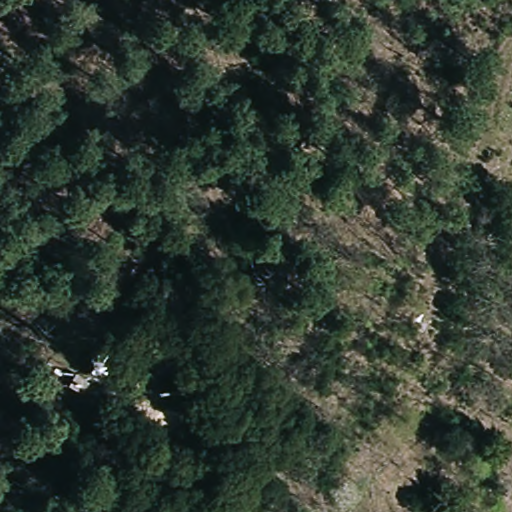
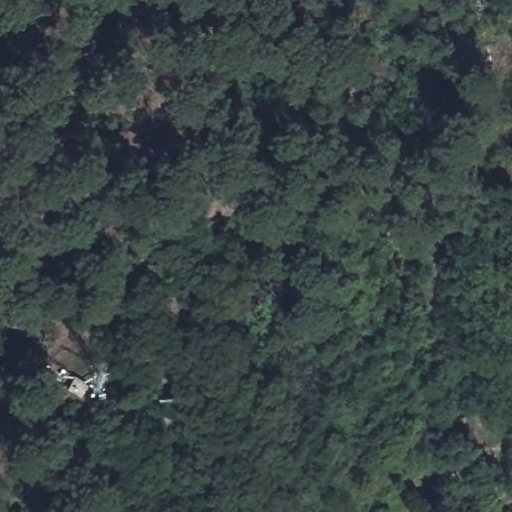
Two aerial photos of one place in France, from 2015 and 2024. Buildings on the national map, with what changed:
unchanged [(92,385),(85,398),(69,390),(77,376),(92,385)]

